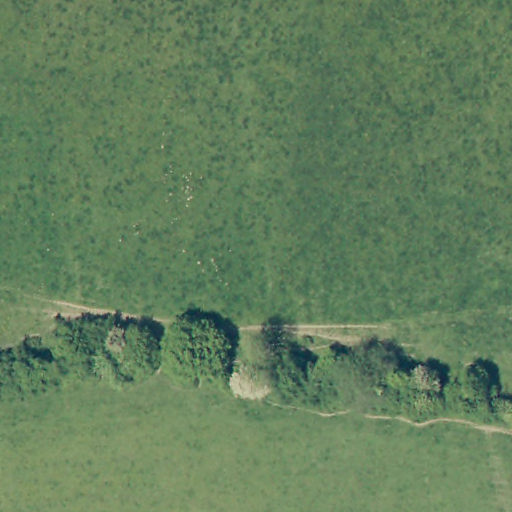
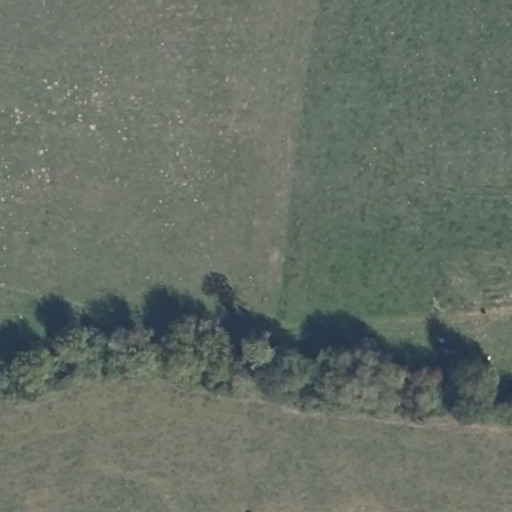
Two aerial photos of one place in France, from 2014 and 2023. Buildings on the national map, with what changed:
[]

